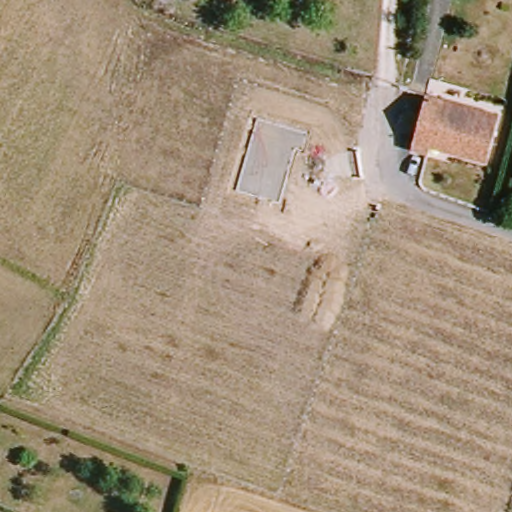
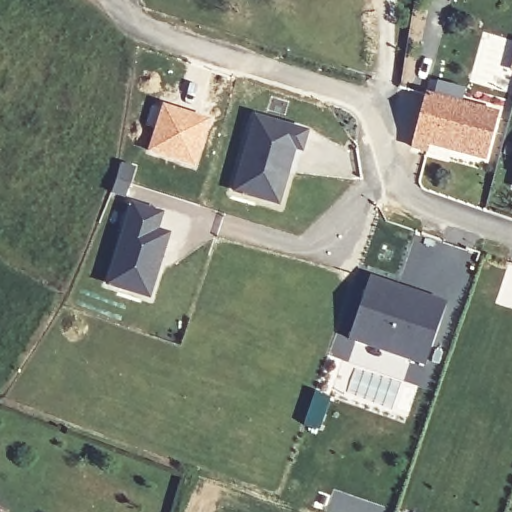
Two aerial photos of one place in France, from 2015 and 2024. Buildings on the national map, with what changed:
unchanged [(497,113),(483,155),(423,138),(421,144),(405,140),(422,89),(497,113)]
new [(160,103),(212,121),(195,170),(145,151),(160,103)]
unchanged [(280,207),(233,193),(254,115),(310,131),(304,154),(297,152),(280,207)]
new [(165,215),(158,232),(172,235),(150,300),(107,286),(132,203),(165,215)]
new [(448,301),(426,366),(350,341),(372,276),(448,301)]

